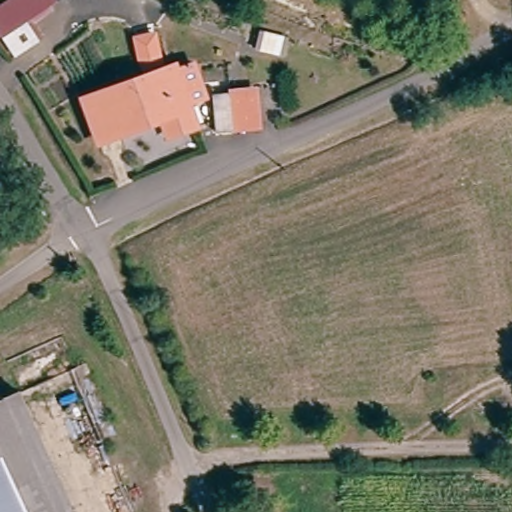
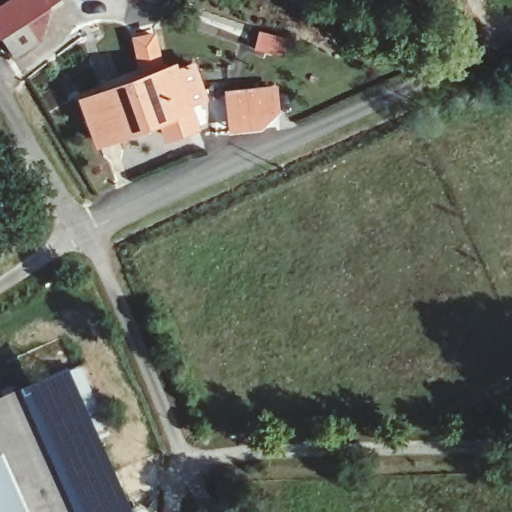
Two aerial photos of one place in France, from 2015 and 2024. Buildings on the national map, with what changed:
unchanged [(49,11),(57,40),(7,54),(0,28),(0,0),(22,0),(27,18),(49,11)]
new [(250,30),(287,35),(285,52),(250,49),(250,30)]
unchanged [(94,136),(80,102),(164,69),(180,62),(194,94),(178,101),(190,129),(166,140),(160,125),(111,144),(99,149),(94,136)]
unchanged [(224,123),(210,120),(215,88),(256,95),(253,112),(250,128),(224,123)]
new [(20,391),(65,370),(130,512),(73,512),(20,391)]
unchanged [(0,400),(20,391),(73,512),(0,512),(0,400)]

